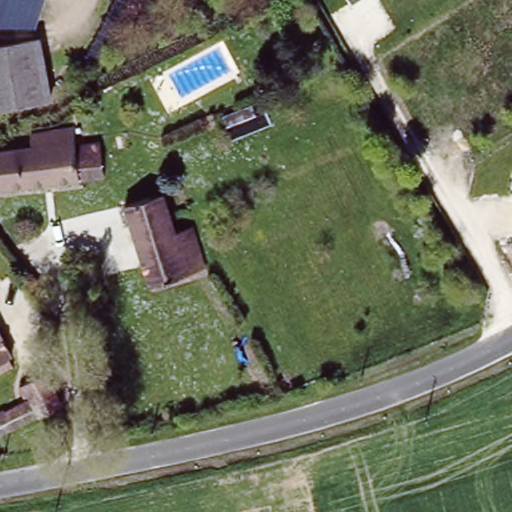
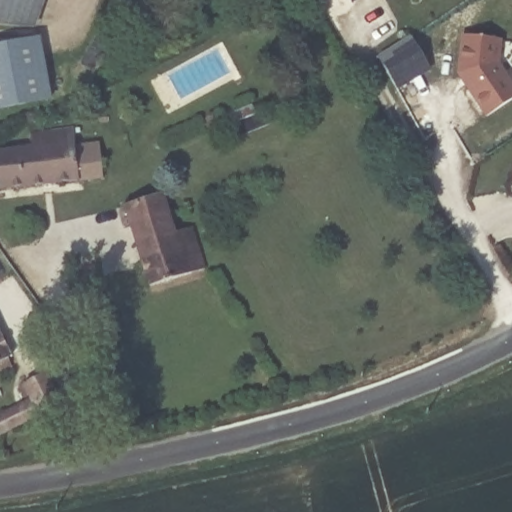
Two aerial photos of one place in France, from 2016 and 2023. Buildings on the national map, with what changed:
unchanged [(0,20),(0,0),(48,0),(40,26),(0,20)]
unchanged [(350,0),(356,0),(352,3),(350,0)]
unchanged [(52,96),(0,106),(0,45),(40,38),(52,96)]
new [(410,39),(429,71),(394,91),(376,60),(410,39)]
new [(462,39),(498,44),(495,64),(512,88),(512,104),(487,121),(469,93),(470,90),(462,78),(458,77),(462,39)]
unchanged [(255,110),(261,126),(232,137),(227,119),(255,110)]
unchanged [(78,140),(100,138),(104,170),(0,185),(0,149),(33,146),(32,134),(77,128),(78,140)]
unchanged [(167,189),(180,228),(138,241),(127,201),(167,189)]
unchanged [(180,228),(195,224),(208,267),(150,284),(138,241),(180,228)]
unchanged [(32,277),(38,277),(48,290),(34,299),(9,264),(17,258),(32,277)]
unchanged [(7,351),(11,361),(0,365),(0,327),(11,349),(7,351)]
unchanged [(35,424),(0,439),(0,419),(7,416),(2,401),(22,391),(35,424)]

